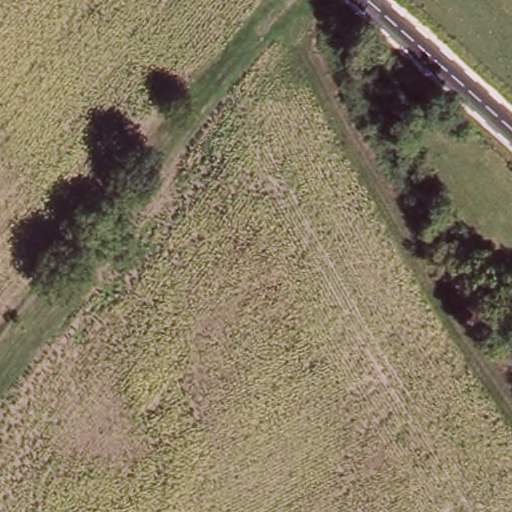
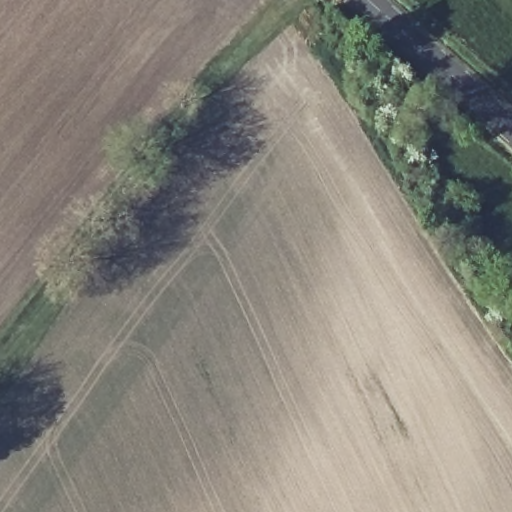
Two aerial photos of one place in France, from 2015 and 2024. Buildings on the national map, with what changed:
[]

